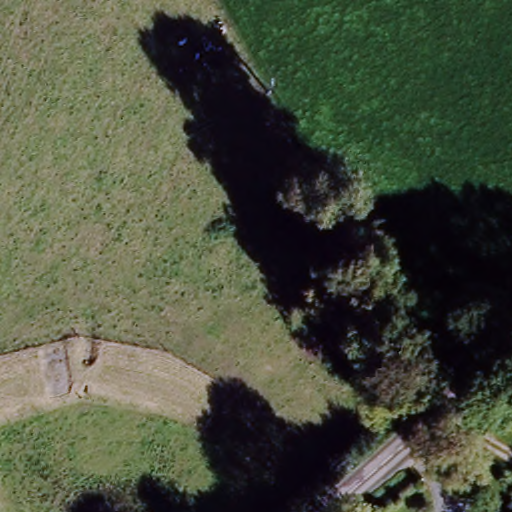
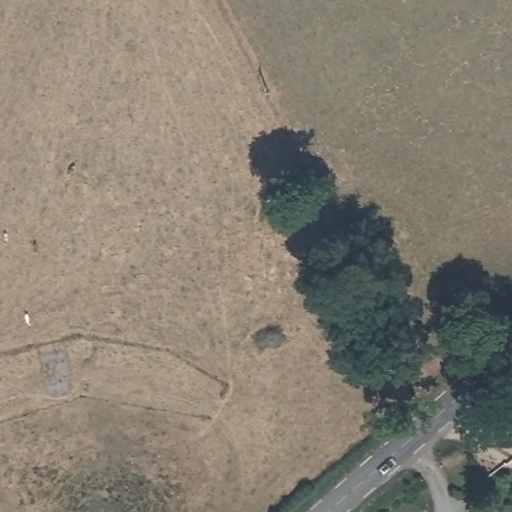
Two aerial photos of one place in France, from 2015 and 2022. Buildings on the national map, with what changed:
[]

